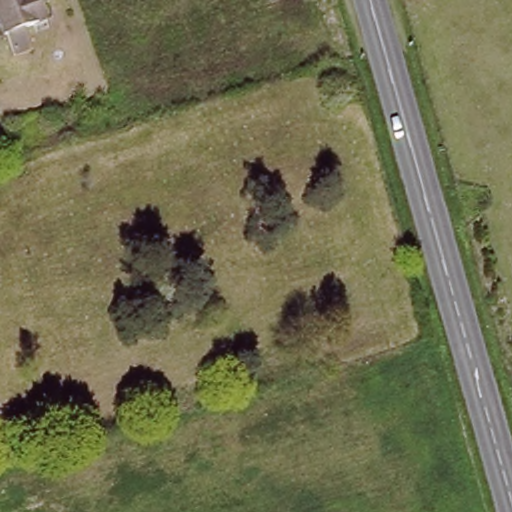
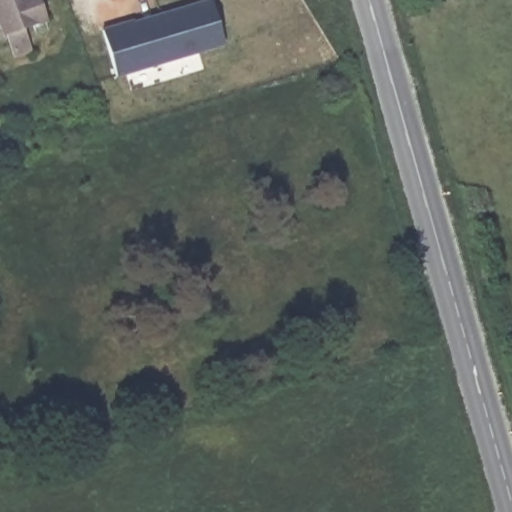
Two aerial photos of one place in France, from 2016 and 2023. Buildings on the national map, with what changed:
unchanged [(37,29),(35,22),(27,26),(35,47),(15,54),(6,31),(3,32),(0,24),(0,0),(39,0),(48,25),(37,29)]
new [(160,12),(201,0),(212,0),(225,41),(116,74),(102,27),(133,18),(134,20),(160,12)]

